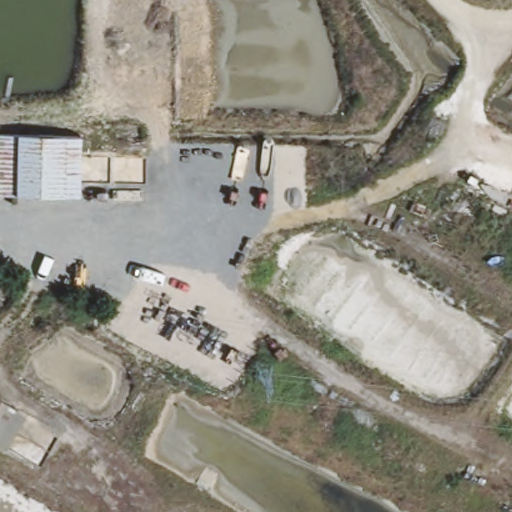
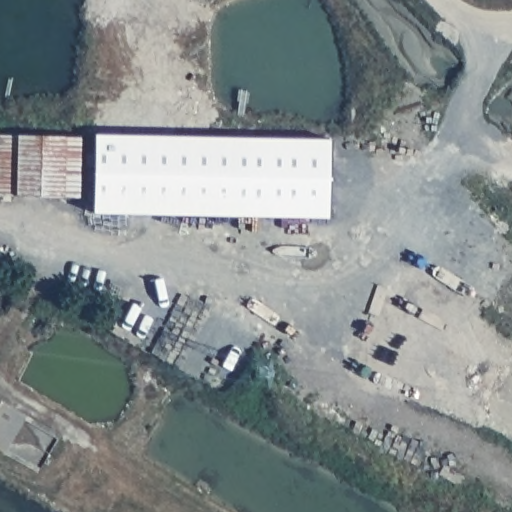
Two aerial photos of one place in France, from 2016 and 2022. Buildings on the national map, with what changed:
unchanged [(0,194),(0,130),(83,133),(81,195),(0,194)]
new [(330,217),(94,213),(95,134),(330,139),(330,217)]
unchanged [(0,445),(0,408),(5,411),(15,417),(0,445)]

